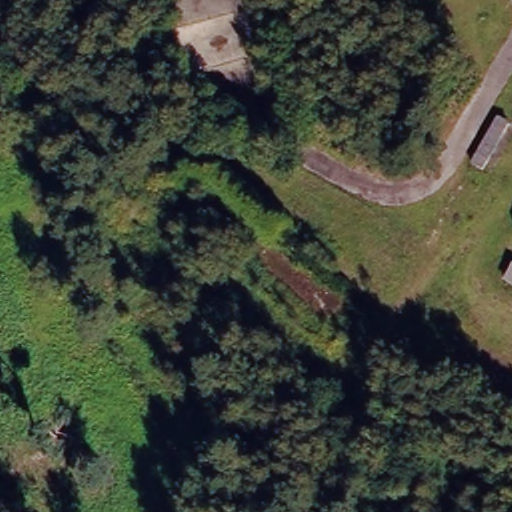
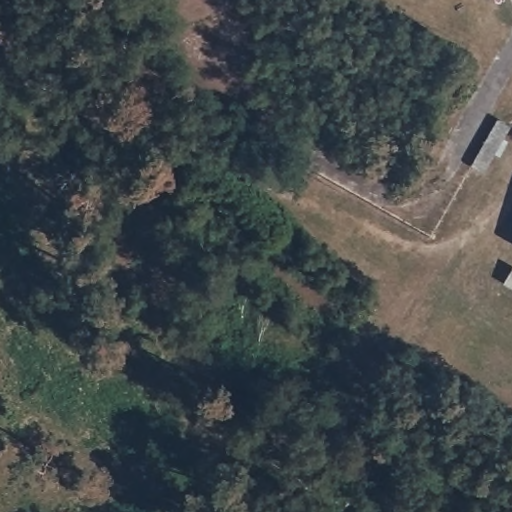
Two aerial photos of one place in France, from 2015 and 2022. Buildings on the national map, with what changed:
unchanged [(308,309),(192,208),(210,182),(297,258),(289,265),(322,291),(308,309)]
unchanged [(512,260),(512,292),(502,286),(512,260)]

